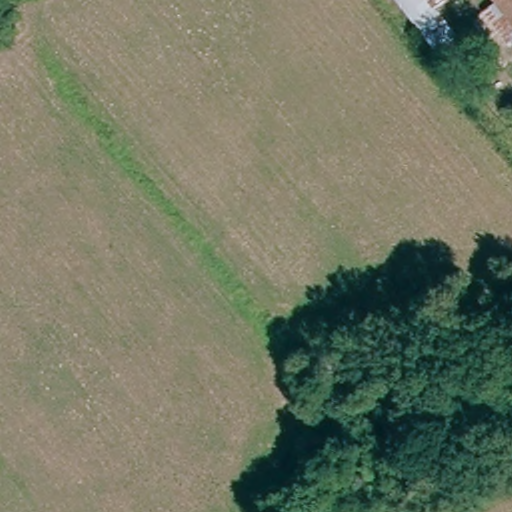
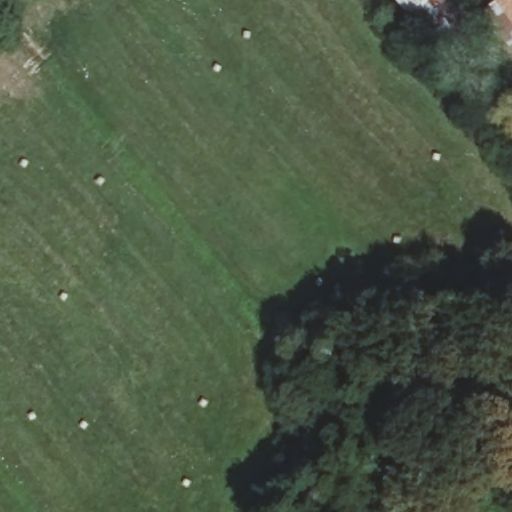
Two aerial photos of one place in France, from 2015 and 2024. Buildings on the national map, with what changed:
unchanged [(462,39),(443,55),(397,0),(450,0),(441,6),(462,39)]
unchanged [(486,19),(501,8),(496,0),(512,0),(512,40),(507,44),(486,19)]

